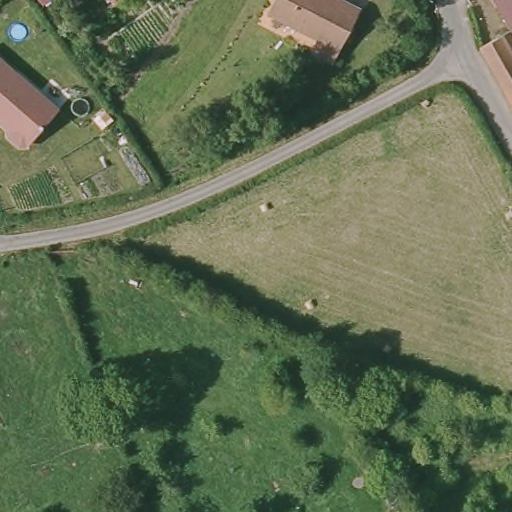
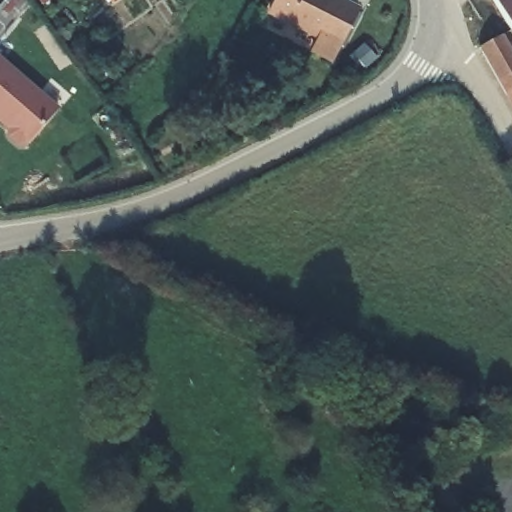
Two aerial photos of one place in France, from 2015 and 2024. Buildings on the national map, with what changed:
unchanged [(331,67),(312,57),(319,44),(269,18),(279,0),(329,0),(358,14),(331,67)]
unchanged [(484,0),(512,0),(512,45),(484,0)]
unchanged [(495,36),(512,66),(512,116),(474,48),(495,36)]
unchanged [(30,144),(0,119),(0,55),(60,105),(30,144)]

